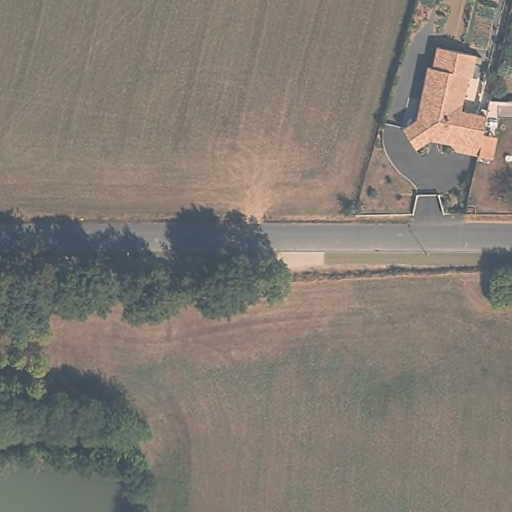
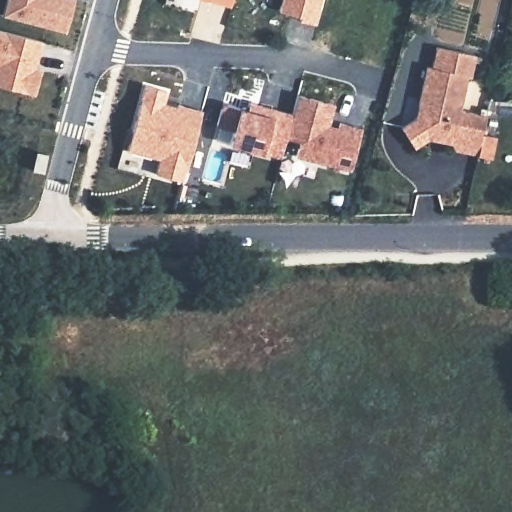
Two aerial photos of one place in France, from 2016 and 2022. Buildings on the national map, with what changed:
new [(6,0),(73,0),(65,33),(2,16),(6,0)]
new [(230,7),(202,0),(231,0),(230,7)]
new [(282,0),(322,0),(315,26),(298,21),(300,18),(278,12),(282,0)]
new [(40,42),(32,70),(39,72),(32,96),(0,87),(0,32),(40,42)]
unchanged [(477,53),(472,78),(468,77),(462,112),(488,116),(485,134),(496,135),(493,159),(478,157),(478,153),(455,149),(452,143),(427,140),(415,148),(402,125),(415,116),(426,64),(431,65),(437,43),(477,53)]
new [(168,92),(165,105),(179,109),(180,106),(203,112),(184,183),(157,175),(161,161),(128,152),(146,86),(168,92)]
new [(295,115),(300,96),(337,107),(331,131),(340,133),(342,125),(364,131),(353,173),(298,158),(302,144),(288,140),(295,115)]
new [(225,105),(249,111),(251,104),(295,115),(288,140),(282,159),(232,146),(236,131),(219,127),(225,105)]

